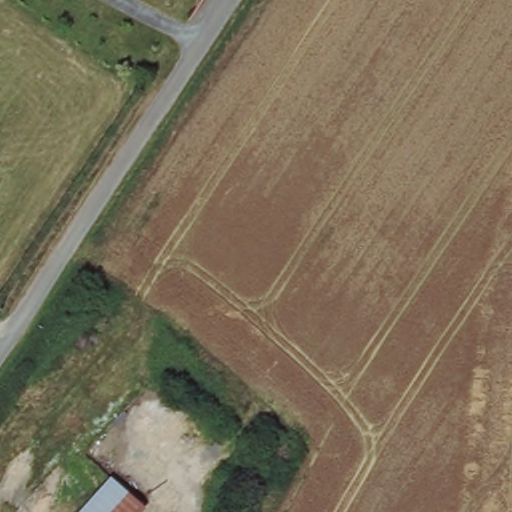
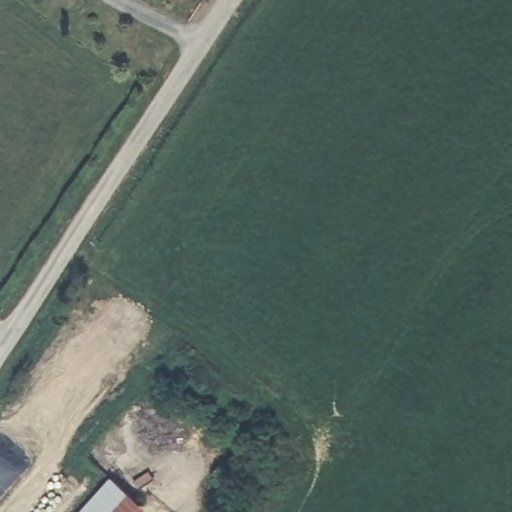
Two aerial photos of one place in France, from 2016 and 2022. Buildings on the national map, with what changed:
unchanged [(138,512),(86,512),(116,482),(142,507),(138,512)]

